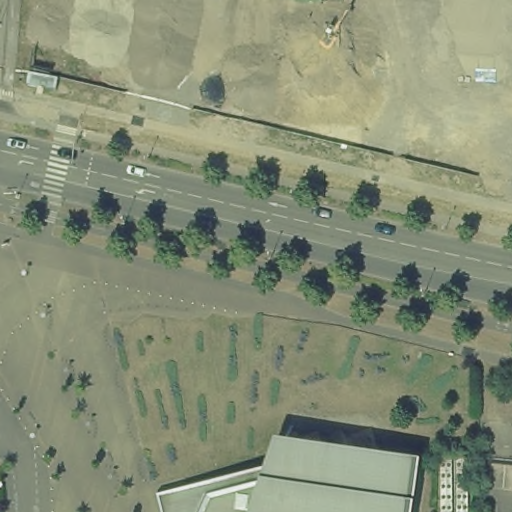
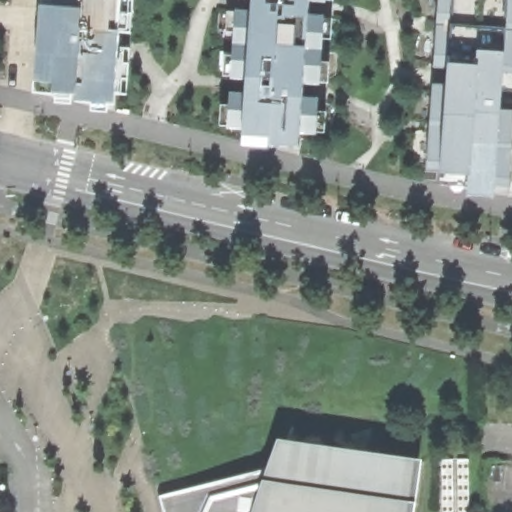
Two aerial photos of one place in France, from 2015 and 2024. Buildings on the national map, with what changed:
new [(122,0),(115,105),(109,105),(108,109),(93,108),(93,104),(75,102),(75,96),(73,96),(71,105),(56,104),(56,95),(35,93),(42,0),(122,0)]
new [(230,93),(246,93),(246,81),(231,79),(233,76),(236,47),(233,44),(236,43),(238,14),(236,11),(252,11),(252,0),(324,0),(326,3),(310,2),(309,15),(324,16),(322,19),(320,49),(323,52),(319,53),(318,83),(320,85),(304,85),(303,97),(319,99),(316,101),(314,132),(316,135),(301,135),(299,149),(270,146),(270,139),(243,137),(243,131),(228,129),(230,126),(233,96),(230,93)]
new [(448,70),(434,68),(439,0),(512,0),(512,74),(504,74),(503,90),(512,91),(512,154),(509,197),(509,199),(495,198),(495,187),(440,186),(441,171),(427,169),(433,85),(447,85),(448,70)]
unchanged [(280,440),(422,462),(415,512),(167,512),(163,497),(272,468),(280,440)]

